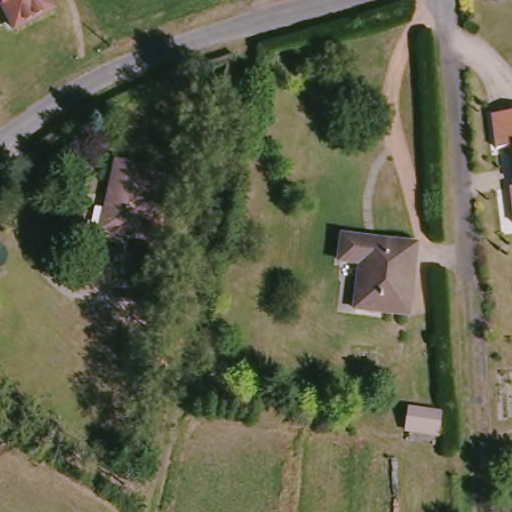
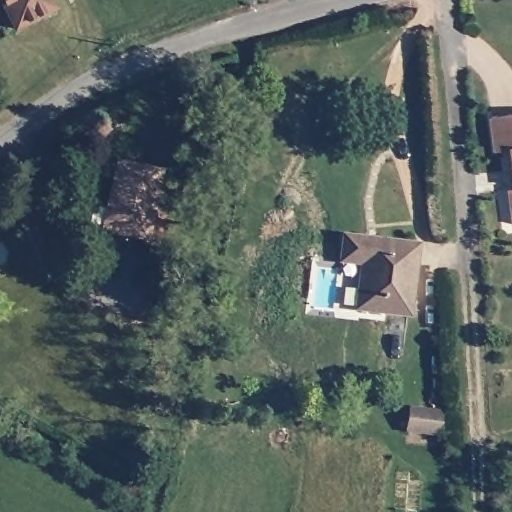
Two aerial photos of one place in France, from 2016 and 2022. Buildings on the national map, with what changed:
unchanged [(58,10),(18,31),(2,0),(53,0),(58,10)]
unchanged [(162,173),(148,241),(102,231),(117,163),(162,173)]
unchanged [(347,236),(420,245),(412,314),(360,308),(365,264),(343,262),(347,236)]
unchanged [(412,408),(444,412),(441,432),(410,428),(412,408)]

